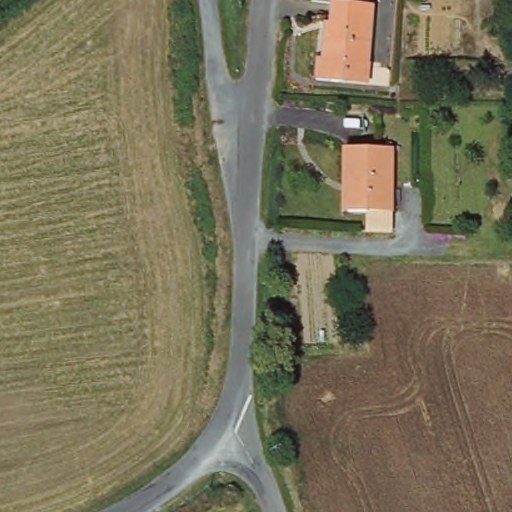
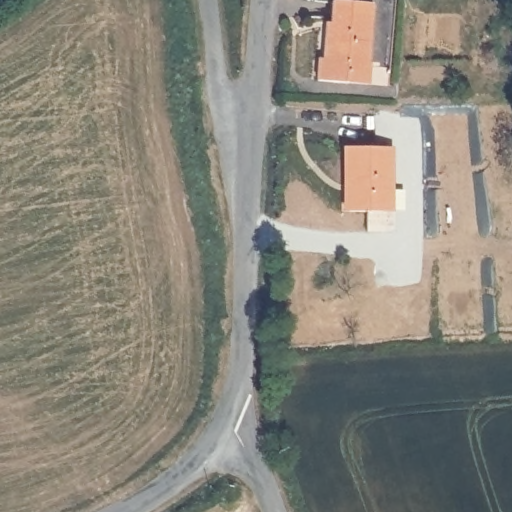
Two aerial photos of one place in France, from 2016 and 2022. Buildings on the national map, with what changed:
unchanged [(377,24),(364,77),(320,69),(333,15),(377,24)]
unchanged [(344,226),(345,196),(340,195),(341,159),(342,136),(363,137),(394,137),(394,160),(389,160),(389,227),(344,226)]

